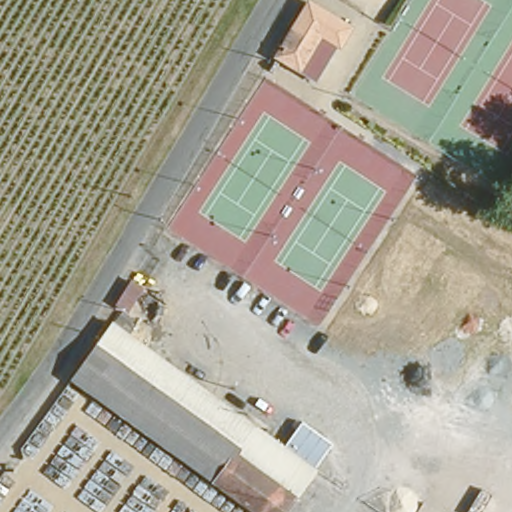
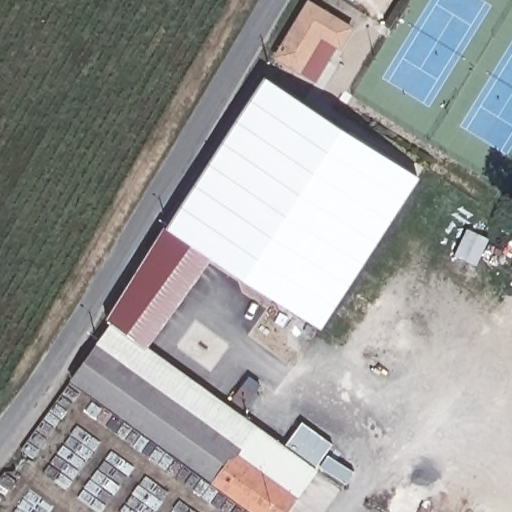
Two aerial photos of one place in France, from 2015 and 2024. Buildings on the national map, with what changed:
unchanged [(304,0),(314,0),(336,13),(346,19),(335,37),(314,72),(304,66),(296,61),(275,49),(304,0)]
new [(419,170),(320,326),(166,229),(269,77),(419,170)]
new [(109,315),(163,228),(166,229),(212,257),(149,344),(111,317),(109,315)]
unchanged [(319,464),(282,512),(261,512),(72,376),(111,317),(319,464)]

